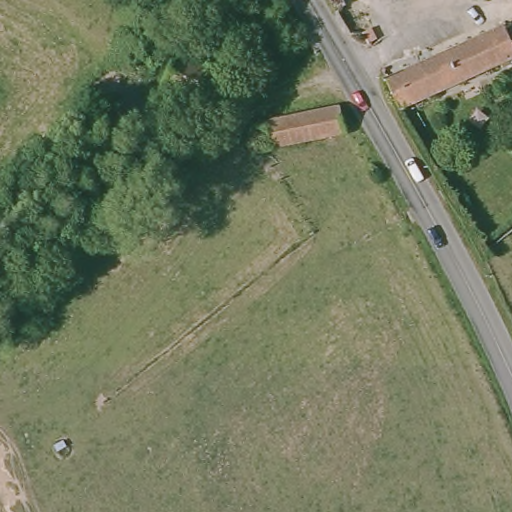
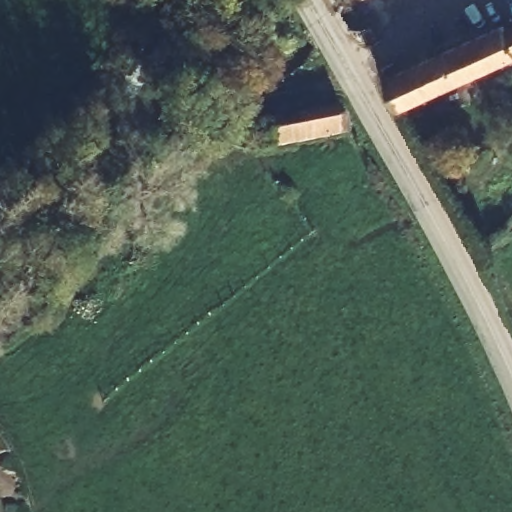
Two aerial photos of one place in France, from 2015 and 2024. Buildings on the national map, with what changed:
unchanged [(457,74),(394,102),(381,75),(497,20),(500,25),(512,19),(512,48),(457,74)]
unchanged [(208,65),(196,99),(160,86),(171,54),(208,65)]
unchanged [(249,129),(266,125),(267,120),(340,106),(345,134),(253,151),(249,129)]

